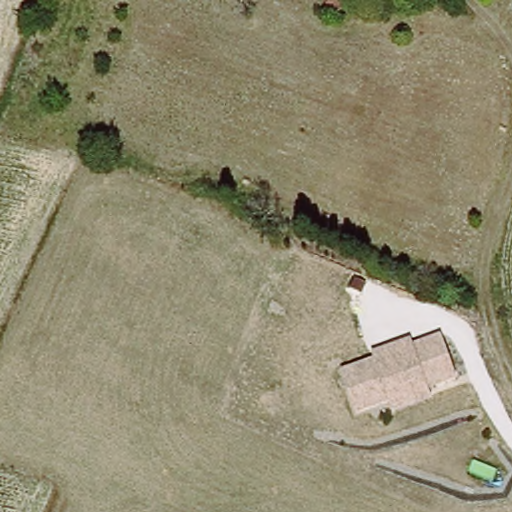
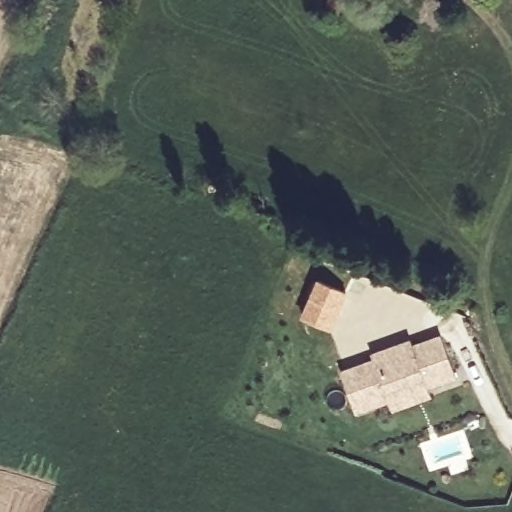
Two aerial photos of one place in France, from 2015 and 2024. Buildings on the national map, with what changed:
unchanged [(320,11),(323,0),(341,0),(336,16),(320,11)]
new [(320,287),(347,299),(338,317),(330,335),(303,323),(312,305),(320,287)]
unchanged [(373,358),(371,350),(410,336),(413,343),(439,334),(457,380),(430,390),(432,398),(392,412),(388,402),(355,414),(342,369),(373,358)]

